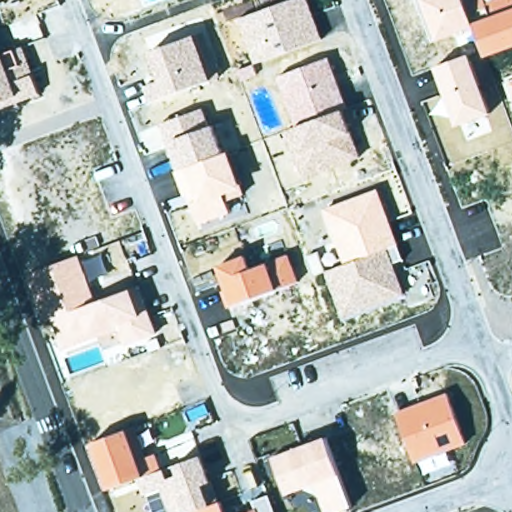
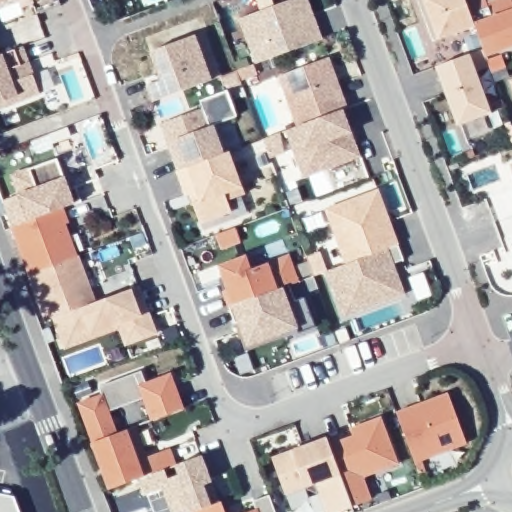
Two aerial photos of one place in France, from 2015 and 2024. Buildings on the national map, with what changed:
new [(0,1),(0,0),(2,0),(0,1)]
unchanged [(254,62),(238,18),(289,0),(308,0),(322,37),(254,62)]
unchanged [(482,32),(439,45),(423,0),(490,0),(492,4),(507,0),(512,0),(512,53),(492,60),(482,32)]
unchanged [(151,100),(146,86),(159,81),(149,51),(206,31),(221,75),(151,100)]
unchanged [(0,110),(0,55),(24,46),(41,95),(0,110)]
unchanged [(492,113),(457,126),(435,67),(470,54),(492,113)]
unchanged [(303,176),(286,129),(296,126),(278,75),(331,56),(354,127),(351,129),(361,157),(303,176)]
unchanged [(508,80),(512,79),(512,94),(508,80)]
unchanged [(200,223),(188,193),(184,195),(175,170),(177,169),(162,123),(204,109),(209,126),(215,124),(225,152),(230,150),(245,194),(227,201),(231,212),(200,223)]
new [(11,226),(0,198),(0,180),(55,158),(63,176),(74,202),(61,207),(30,219),(11,226)]
new [(510,166),(512,165),(512,171),(510,166)]
unchanged [(340,317),(326,272),(344,263),(325,208),(379,189),(403,260),(394,264),(406,294),(340,317)]
new [(11,226),(30,219),(61,207),(80,254),(29,274),(11,226)]
unchanged [(96,298),(140,284),(157,334),(125,346),(119,330),(62,348),(50,316),(45,318),(29,274),(80,254),(96,298)]
unchanged [(288,284),(230,305),(226,306),(221,291),(225,289),(216,265),(246,254),(251,268),(288,254),(298,281),(288,284)]
new [(299,332),(297,329),(245,348),(230,305),(288,284),(294,300),(304,297),(315,325),(299,332)]
new [(184,408),(151,420),(142,399),(108,411),(117,433),(91,443),(77,402),(97,394),(95,387),(140,370),(145,382),(170,372),(184,408)]
unchanged [(448,392),(467,444),(412,462),(396,412),(448,392)]
new [(362,476),(371,500),(351,507),(329,443),(351,436),(348,428),(382,417),(398,464),(362,476)]
unchanged [(156,453),(162,468),(201,455),(211,482),(204,484),(211,504),(221,501),(225,512),(169,512),(162,490),(145,495),(139,479),(107,490),(91,443),(128,429),(139,458),(156,453)]
unchanged [(351,507),(338,512),(324,512),(318,495),(302,488),(283,494),(271,456),(326,436),(351,507)]
new [(21,512),(0,512),(0,491),(15,494),(21,512)]
unchanged [(252,500),(269,494),(275,512),(246,512),(255,509),(252,500)]

